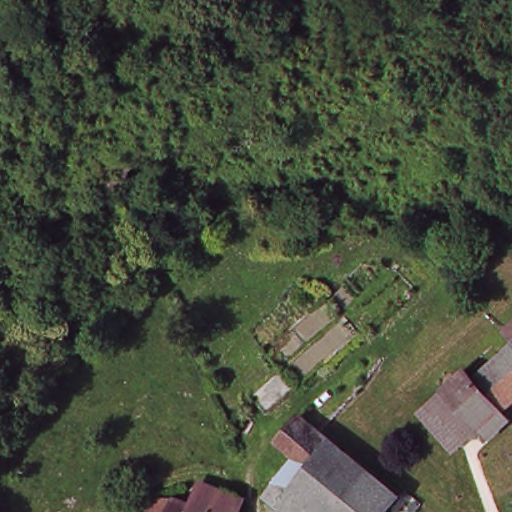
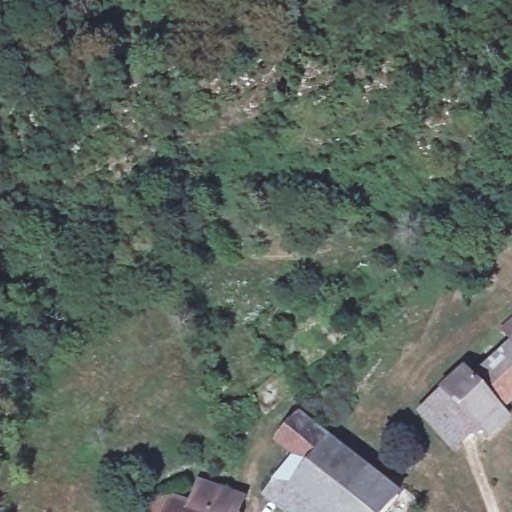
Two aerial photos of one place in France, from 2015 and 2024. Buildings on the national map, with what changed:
unchanged [(498,365),(512,353),(512,405),(476,437),(434,391),(482,348),(498,365)]
unchanged [(434,391),(476,437),(453,458),(412,412),(434,391)]
unchanged [(376,512),(282,512),(260,495),(287,460),(272,445),(300,410),(393,488),(376,512)]
unchanged [(188,497),(200,495),(204,498),(226,512),(181,512),(187,500),(188,497)]

